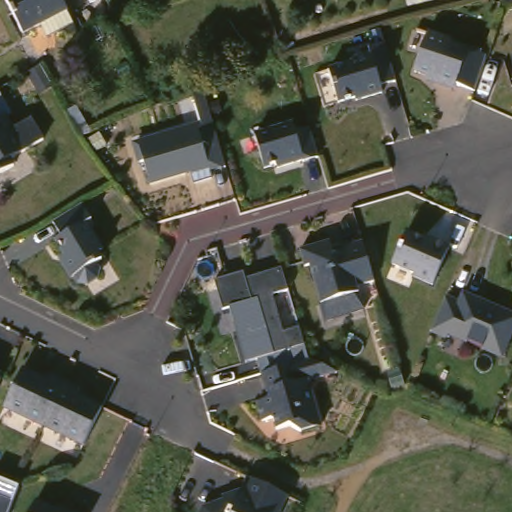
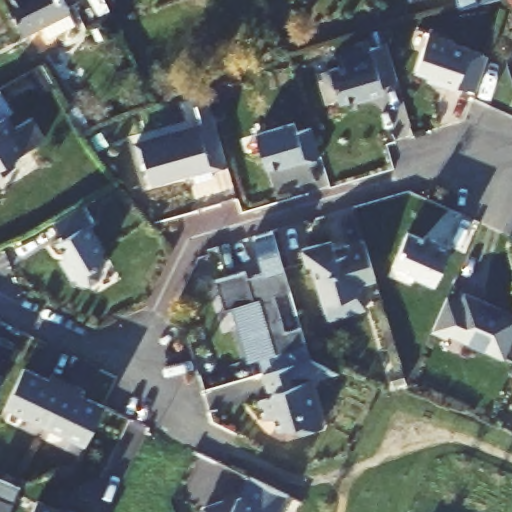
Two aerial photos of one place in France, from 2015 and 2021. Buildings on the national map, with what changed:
unchanged [(57,33),(50,20),(33,28),(19,0),(74,0),(77,6),(84,19),(57,33)]
unchanged [(418,72),(432,34),(486,52),(469,94),(418,72)]
unchanged [(391,88),(375,92),(377,99),(351,107),(350,104),(332,109),(323,76),(347,69),(346,66),(365,61),(363,54),(380,50),(391,88)]
unchanged [(41,65),(52,84),(39,92),(27,73),(41,65)]
unchanged [(22,107),(16,111),(23,123),(39,114),(51,136),(35,145),(20,154),(24,160),(0,174),(0,89),(7,85),(22,107)]
unchanged [(152,184),(145,161),(142,162),(136,144),(166,135),(202,124),(193,91),(204,87),(225,159),(226,162),(211,167),(214,177),(196,183),(192,172),(167,179),(152,184)]
unchanged [(91,133),(83,136),(67,109),(74,106),(91,133)]
unchanged [(304,140),(308,156),(309,158),(293,163),(293,161),(268,168),(267,165),(255,168),(251,154),(246,135),(284,124),(287,132),(301,128),(304,140)]
unchanged [(102,215),(97,218),(112,245),(107,248),(112,255),(106,259),(109,265),(112,270),(107,274),(97,280),(92,283),(88,278),(84,271),(82,272),(76,261),(72,255),(78,252),(67,234),(72,232),(63,217),(67,214),(77,209),(92,199),(102,215)]
unchanged [(422,240),(422,237),(448,248),(432,285),(413,277),(415,274),(392,264),(406,233),(422,240)]
unchanged [(334,257),(346,254),(343,247),(362,241),(374,281),(357,286),(358,293),(321,304),(309,265),(305,267),(300,250),(329,241),(334,257)]
unchanged [(244,364),(229,310),(222,312),(216,289),(213,280),(243,272),(245,278),(251,277),(281,268),(288,292),(272,297),(282,334),(298,329),(300,332),(303,347),(244,364)]
unchanged [(461,332),(446,326),(461,293),(475,298),(478,289),(512,303),(512,350),(493,342),(462,329),(461,332)]
unchanged [(292,364),(307,359),(325,367),(334,372),(320,376),(306,380),(311,396),(320,425),(300,431),(288,425),(276,429),(272,417),(262,421),(258,411),(256,402),(266,399),(271,390),(263,387),(260,374),(292,364)]
unchanged [(35,421),(9,409),(26,370),(52,382),(54,376),(84,390),(82,396),(95,402),(107,408),(89,446),(35,421)]
unchanged [(2,378),(0,382),(0,377),(2,378)]
unchanged [(297,491),(286,512),(209,512),(213,503),(250,491),(258,473),(297,491)]
unchanged [(0,512),(0,479),(19,487),(9,512),(0,512)]
unchanged [(77,512),(78,508),(86,512),(39,512),(46,497),(77,512)]

